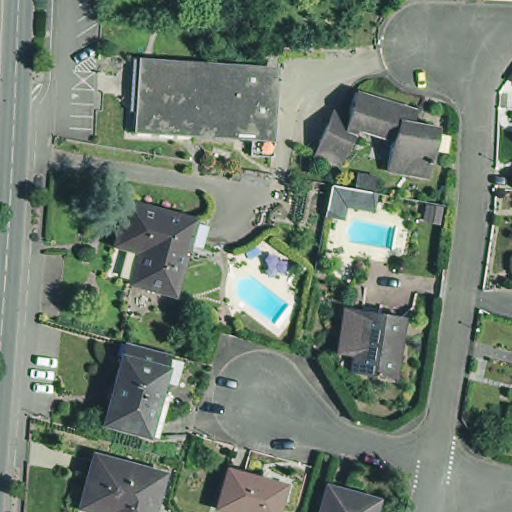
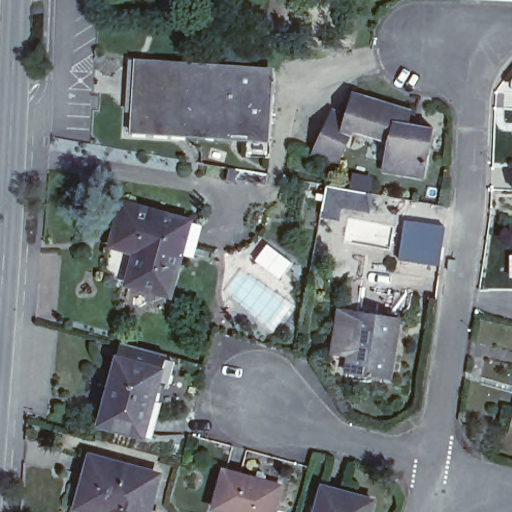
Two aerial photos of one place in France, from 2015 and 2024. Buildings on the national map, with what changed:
unchanged [(140,66),(137,125),(185,129),(185,135),(127,132),(132,52),(250,58),(250,72),(140,66)]
unchanged [(281,74),(278,134),(185,129),(137,125),(140,66),(250,72),(281,74)]
unchanged [(306,150),(318,129),(332,106),(345,112),(350,89),(411,107),(410,120),(432,124),(425,172),(380,167),(384,137),(350,130),(343,141),(332,164),(306,150)]
unchanged [(373,194),(371,212),(344,207),(341,220),(323,216),(330,187),(373,194)]
unchanged [(123,246),(127,233),(132,212),(135,204),(201,222),(200,226),(181,295),(139,283),(115,277),(123,246)]
new [(403,218),(445,225),(438,266),(396,259),(403,218)]
unchanged [(340,346),(340,344),(327,342),(329,331),(325,331),(330,300),(346,302),(390,309),(400,311),(391,370),(381,368),(338,362),(340,346)]
unchanged [(101,429),(119,362),(123,347),(168,360),(164,375),(146,441),(101,429)]
unchanged [(67,496),(71,486),(75,487),(88,441),(155,459),(145,493),(154,496),(150,509),(140,507),(139,512),(118,512),(112,511),(113,509),(99,505),(67,496)]
unchanged [(210,502),(220,463),(252,472),(255,461),(288,469),(281,496),(272,493),(267,512),(249,512),(210,502)]
unchanged [(365,490),(359,512),(303,512),(313,476),(365,490)]

